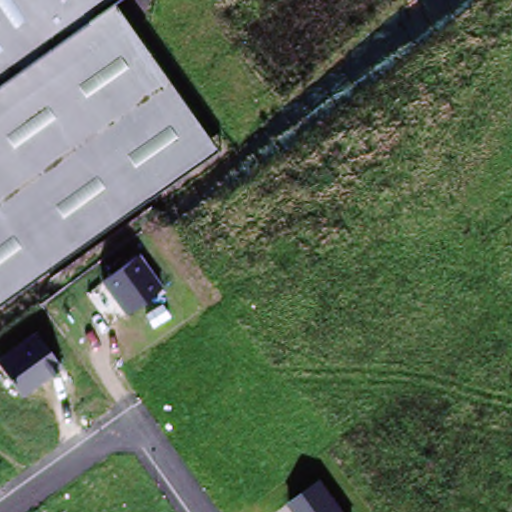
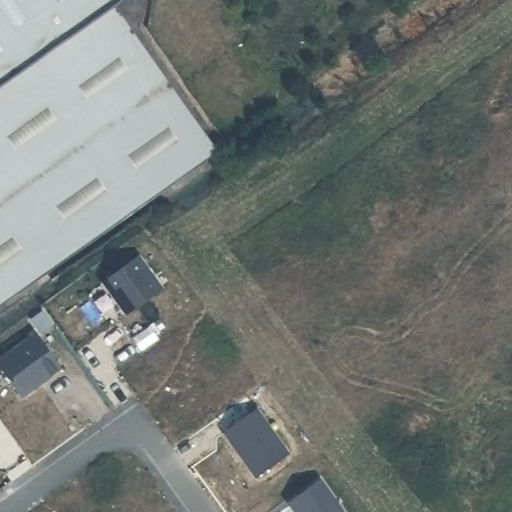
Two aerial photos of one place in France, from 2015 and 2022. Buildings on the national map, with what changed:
unchanged [(115,3),(217,151),(0,305),(0,0),(120,0),(115,3)]
unchanged [(141,256),(164,288),(126,314),(105,281),(141,256)]
unchanged [(37,334),(60,367),(23,394),(0,362),(0,359),(37,334)]
new [(226,435),(259,412),(290,457),(257,481),(226,435)]
unchanged [(345,512),(296,512),(290,502),(321,479),(345,512)]

